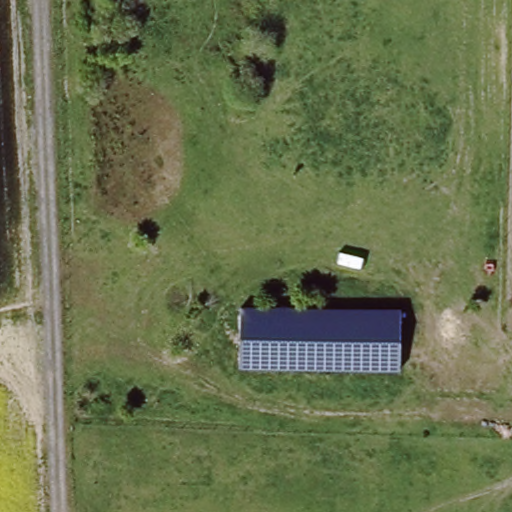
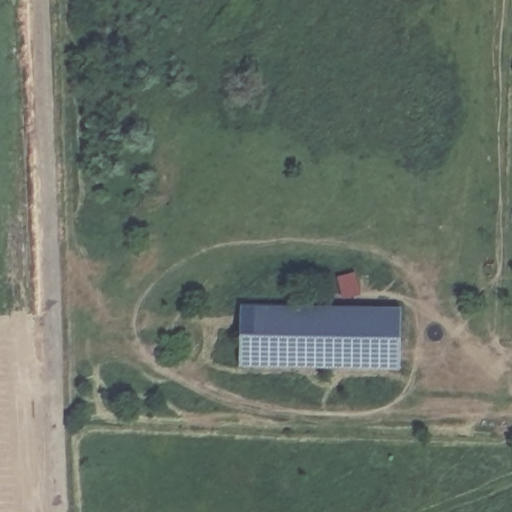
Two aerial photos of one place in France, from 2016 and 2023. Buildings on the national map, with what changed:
unchanged [(403,367),(241,369),(241,310),(402,308),(403,367)]

